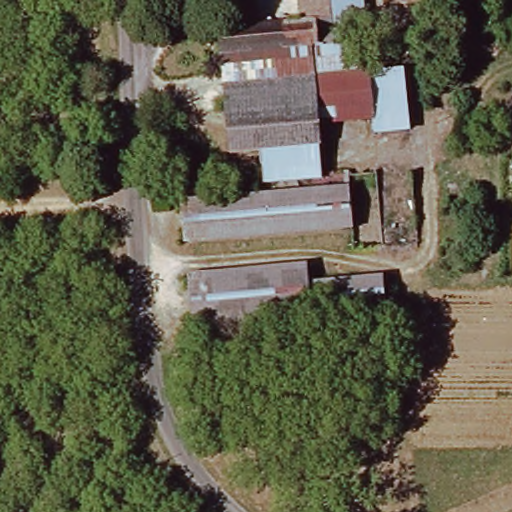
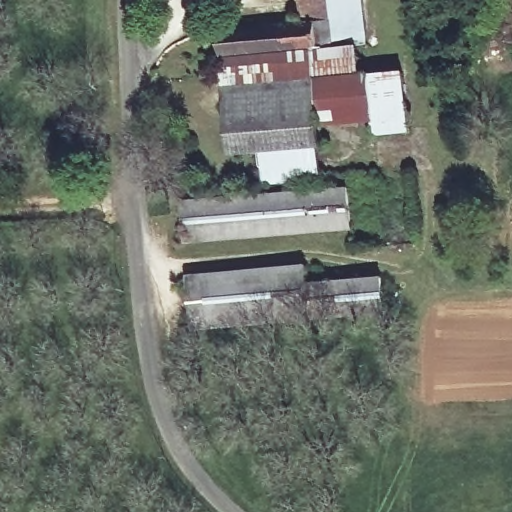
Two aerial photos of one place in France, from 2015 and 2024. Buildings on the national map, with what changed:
unchanged [(356,0),(359,37),(224,50),(221,24),(299,15),(298,0),(356,0)]
unchanged [(359,37),(362,66),(407,63),(411,130),(373,131),(373,119),(327,122),(330,177),(268,182),(265,143),(321,139),(316,74),(228,80),(224,50),(359,37)]
unchanged [(228,80),(316,74),(321,139),(265,143),(232,145),(228,80)]
unchanged [(79,136),(95,137),(94,159),(78,159),(79,136)]
unchanged [(183,240),(179,201),(346,191),(348,230),(183,240)]
unchanged [(198,328),(193,275),(313,265),(314,285),(389,280),(392,314),(198,328)]

